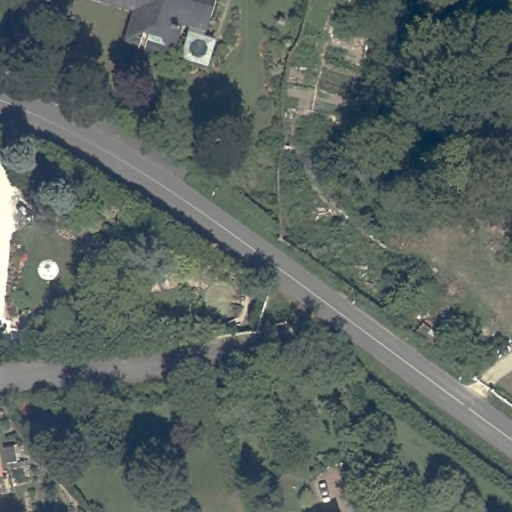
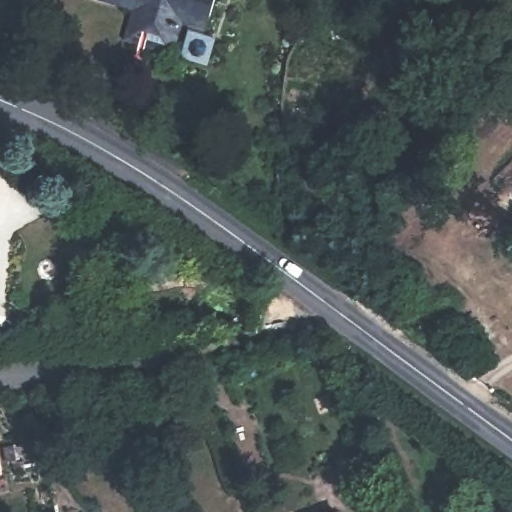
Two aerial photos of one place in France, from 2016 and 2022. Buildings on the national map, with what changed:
unchanged [(209,31),(183,24),(176,53),(127,40),(135,9),(100,0),(217,0),(209,31)]
unchanged [(187,52),(191,37),(196,35),(211,39),(214,44),(210,59),(205,62),(190,57),(187,52)]
unchanged [(9,426),(16,467),(0,470),(0,427),(9,426)]

